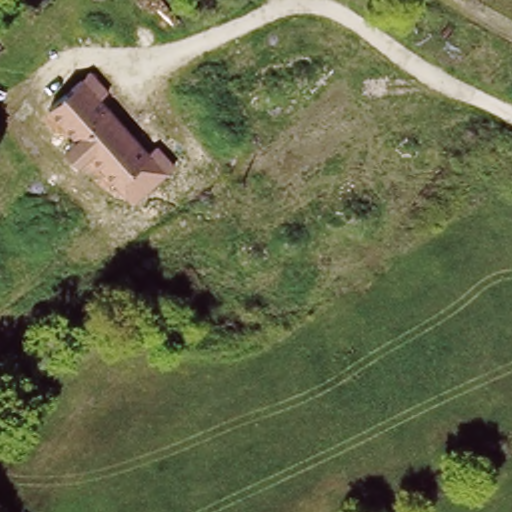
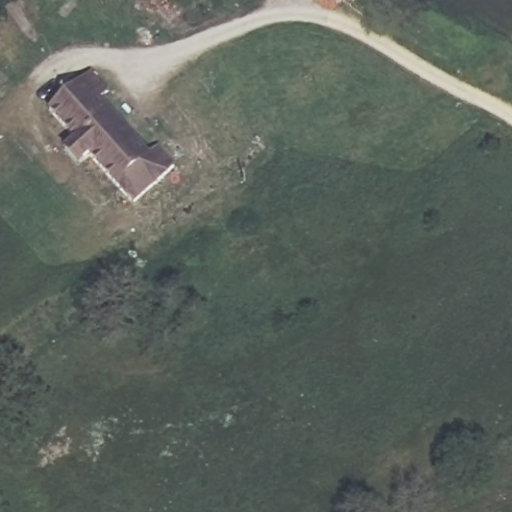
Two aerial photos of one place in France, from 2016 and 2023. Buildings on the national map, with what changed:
unchanged [(95,72),(110,93),(103,99),(146,154),(155,147),(171,168),(131,200),(91,155),(78,166),(64,151),(78,139),(50,106),(95,72)]

